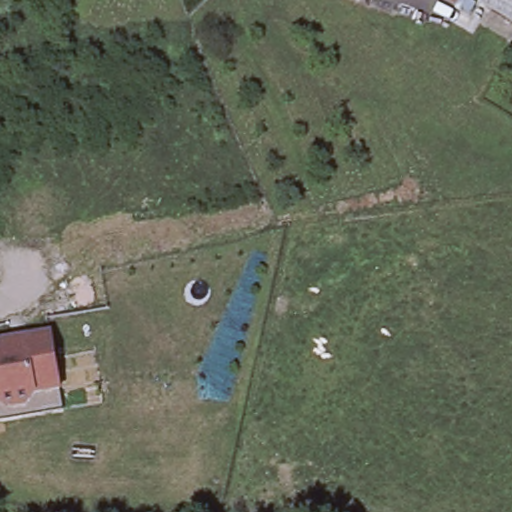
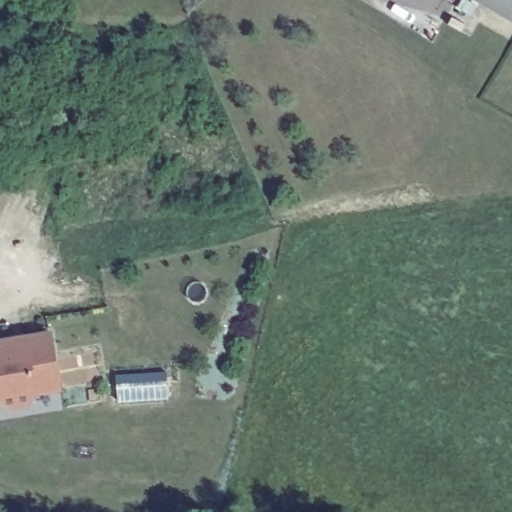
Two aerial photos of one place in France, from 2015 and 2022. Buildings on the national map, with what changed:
unchanged [(487,0),(512,0),(512,15),(487,0)]
unchanged [(30,394),(27,398),(10,402),(0,394),(0,336),(11,334),(12,338),(24,335),(25,335),(25,332),(50,327),(60,383),(35,387),(30,394)]
unchanged [(32,408),(0,413),(0,394),(10,402),(27,398),(30,394),(35,387),(60,383),(64,402),(32,408)]

